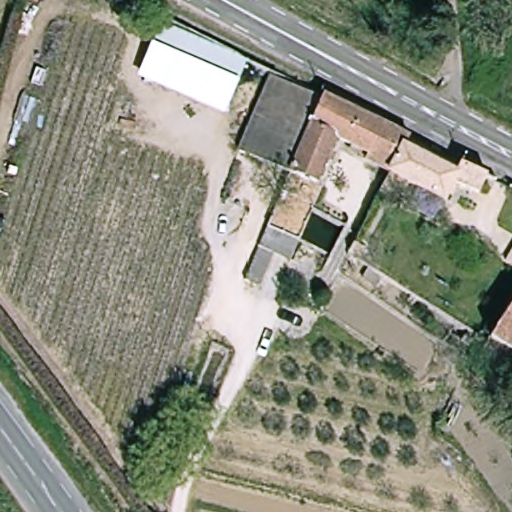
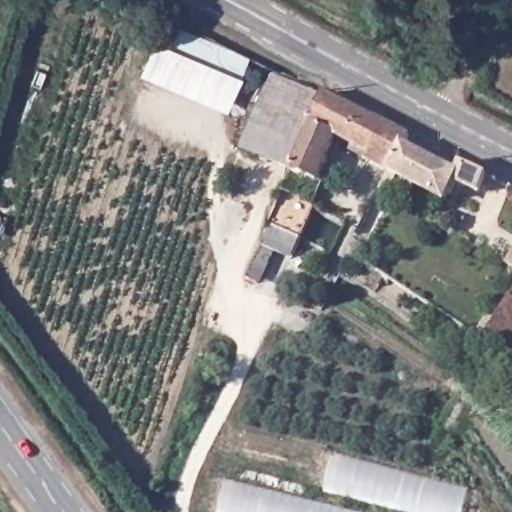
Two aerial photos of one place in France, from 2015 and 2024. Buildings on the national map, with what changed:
unchanged [(241,78),(226,111),(138,73),(153,38),(241,78)]
unchanged [(330,89),(292,175),(291,178),(238,153),(279,63),(330,89)]
unchanged [(417,132),(410,147),(397,172),(377,161),(383,150),(345,132),(314,185),(292,175),(330,89),(417,132)]
unchanged [(411,179),(401,194),(389,187),(397,172),(410,147),(463,174),(452,198),(411,179)]
unchanged [(507,175),(500,193),(463,174),(471,158),(479,162),(507,175)]
unchanged [(249,275),(265,238),(287,188),(318,202),(295,252),(285,247),(267,283),(249,275)]
unchanged [(507,268),(512,261),(512,271),(507,268)]
unchanged [(490,334),(512,297),(512,346),(490,334)]
new [(467,494),(462,512),(407,512),(325,490),(333,460),(467,494)]
new [(332,512),(218,512),(226,486),(332,512)]

